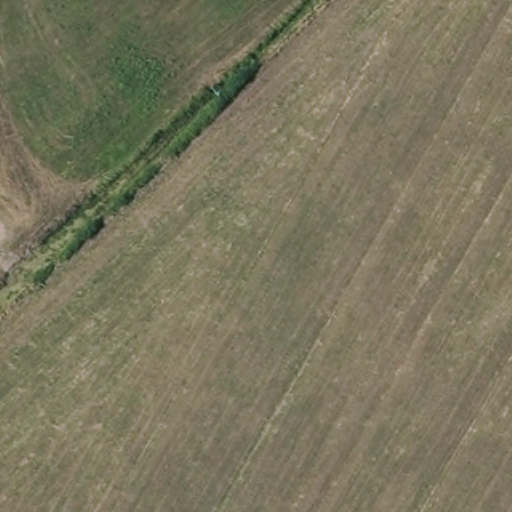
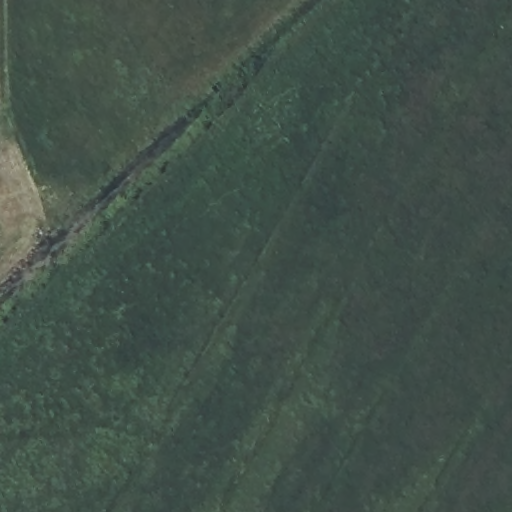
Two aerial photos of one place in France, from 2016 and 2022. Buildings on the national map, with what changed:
[]

